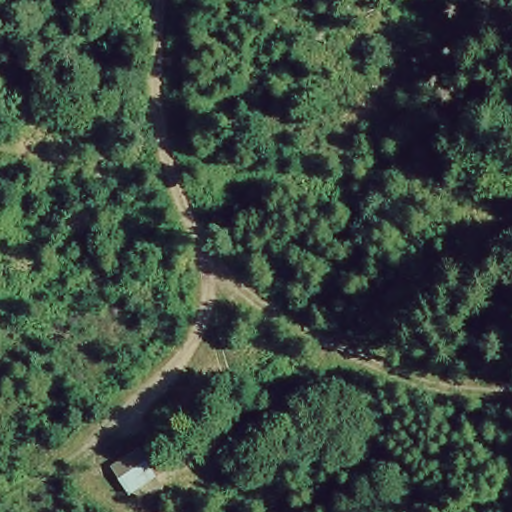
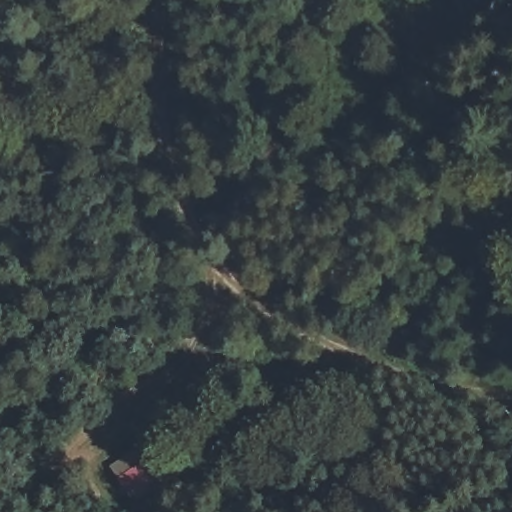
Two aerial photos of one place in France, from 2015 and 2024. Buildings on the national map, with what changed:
unchanged [(127,502),(104,471),(140,450),(158,483),(127,502)]

